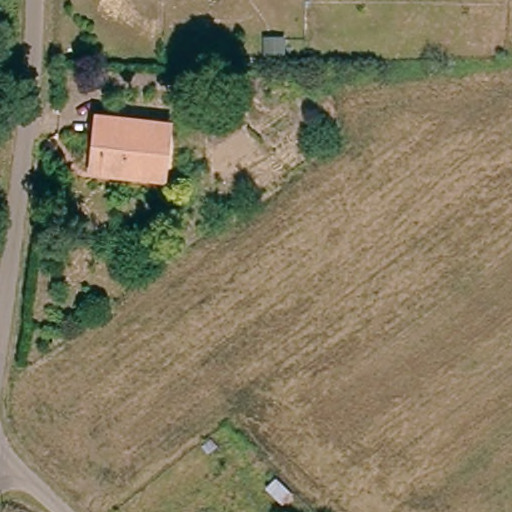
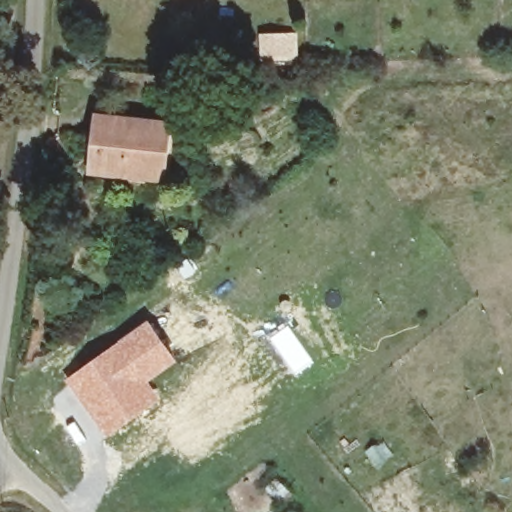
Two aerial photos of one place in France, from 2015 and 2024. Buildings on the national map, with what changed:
unchanged [(280,35),(279,51),(259,51),(259,35),(280,35)]
unchanged [(227,64),(226,81),(199,81),(199,64),(227,64)]
unchanged [(131,180),(95,180),(95,124),(169,125),(169,174),(169,180),(131,180)]
new [(148,318),(178,361),(150,381),(161,398),(107,437),(65,378),(148,318)]

